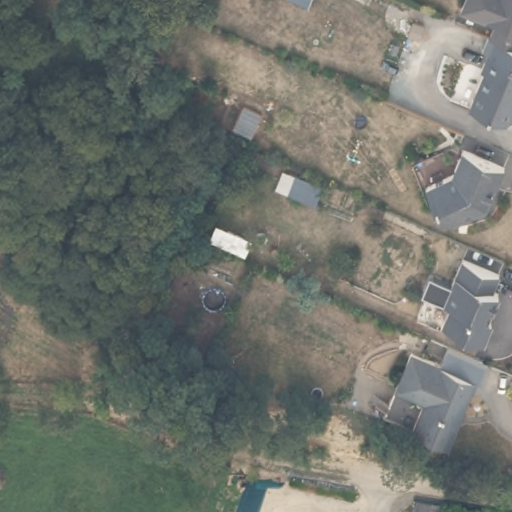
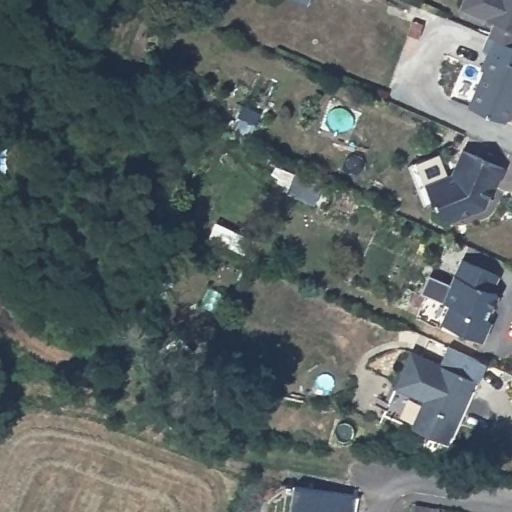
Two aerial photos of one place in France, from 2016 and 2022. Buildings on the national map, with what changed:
unchanged [(491,39),(497,25),(463,11),(467,0),(512,0),(512,48),(498,42),(491,39)]
unchanged [(477,67),(485,50),(512,62),(512,94),(511,94),(508,103),(510,107),(506,118),(500,120),(465,105),(480,69),(477,67)]
unchanged [(453,219),(440,215),(427,185),(429,184),(454,172),(463,149),(505,165),(498,183),(496,182),(486,206),(453,219)]
unchanged [(490,291),(495,293),(485,320),(489,321),(480,341),(440,324),(448,305),(441,302),(460,259),(496,275),(490,291)]
unchanged [(475,381),(462,411),(459,410),(455,419),(457,424),(448,444),(413,430),(425,401),(396,389),(411,353),(475,381)]
new [(352,495),(349,512),(290,512),(293,485),(352,495)]
unchanged [(435,510),(435,512),(411,512),(411,508),(435,510)]

